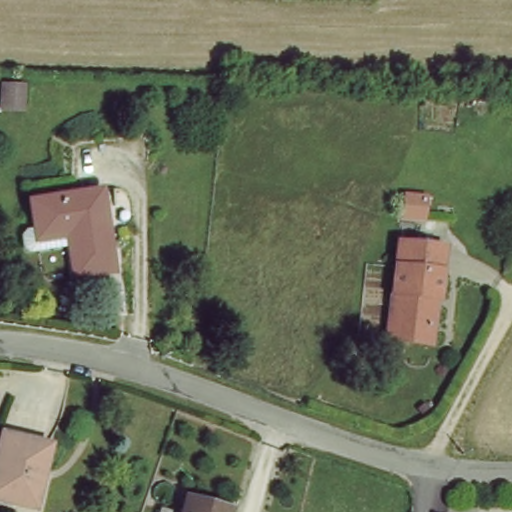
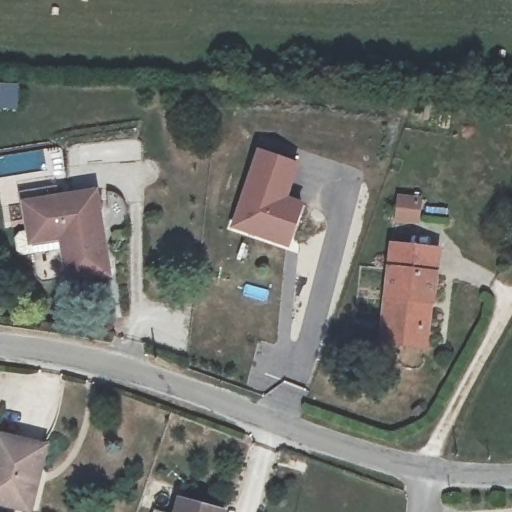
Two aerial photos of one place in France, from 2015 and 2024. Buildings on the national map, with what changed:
unchanged [(0,92),(5,91),(7,110),(0,111),(0,92)]
new [(257,148),(299,163),(288,197),(304,203),(288,249),(230,228),(257,148)]
unchanged [(33,229),(29,204),(99,193),(112,275),(76,282),(72,254),(37,260),(27,254),(23,239),(33,229)]
unchanged [(407,348),(388,347),(396,249),(440,250),(436,303),(431,303),(429,336),(427,349),(407,348)]
unchanged [(26,512),(17,512),(0,506),(0,434),(45,449),(26,512)]
unchanged [(189,505),(208,512),(185,512),(189,505)]

